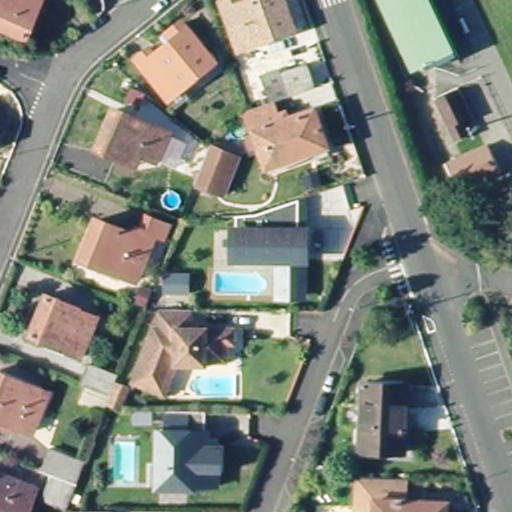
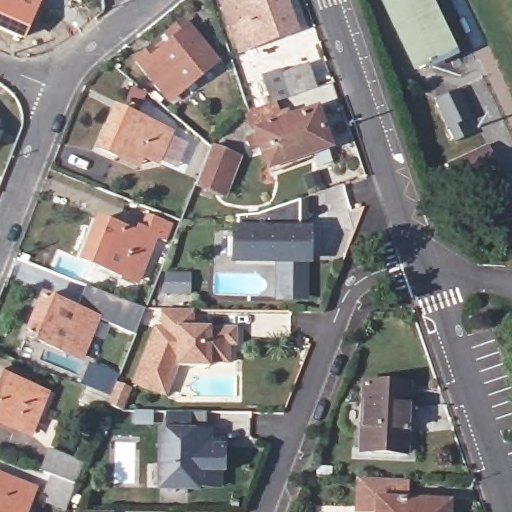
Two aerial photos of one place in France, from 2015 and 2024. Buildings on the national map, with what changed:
unchanged [(41,0),(25,38),(0,28),(0,0),(41,0)]
unchanged [(237,4),(239,11),(263,2),(262,0),(285,0),(297,36),(239,56),(222,9),(237,4)]
unchanged [(420,72),(385,0),(432,0),(458,52),(420,72)]
unchanged [(152,52),(157,57),(169,47),(167,40),(184,26),(217,63),(173,102),(139,63),(152,52)]
unchanged [(268,100),(262,102),(253,75),(273,68),(275,73),(306,62),(313,85),(268,100)]
unchanged [(475,119),(466,123),(473,138),(457,145),(437,103),(462,92),(475,119)]
unchanged [(262,102),(268,100),(273,116),(310,104),(323,144),(262,164),(244,109),(262,102)]
unchanged [(115,109),(169,132),(157,160),(142,154),(137,165),(98,148),(115,109)]
unchanged [(245,156),(236,177),(229,195),(197,183),(212,144),(245,156)]
unchanged [(503,176),(463,195),(451,168),(481,154),(491,149),(503,176)]
unchanged [(296,236),(302,235),(306,262),(303,263),(308,300),(286,302),(281,266),(236,271),(232,244),(234,243),(232,221),(250,219),(292,204),(296,236)]
unchanged [(146,310),(133,306),(138,284),(82,261),(97,225),(139,242),(142,233),(151,214),(172,222),(163,242),(157,239),(141,277),(157,283),(146,310)]
unchanged [(170,272),(190,274),(189,294),(167,295),(170,272)]
unchanged [(43,296),(97,318),(82,356),(27,335),(43,296)]
unchanged [(151,391),(132,384),(154,328),(161,328),(161,311),(192,311),(192,328),(237,329),(237,346),(231,346),(231,364),(211,364),(211,367),(177,367),(171,381),(165,397),(151,391)]
unchanged [(103,414),(102,414),(76,403),(84,385),(80,384),(88,364),(117,376),(110,396),(105,408),(103,414)]
unchanged [(41,395),(27,432),(0,422),(0,380),(41,395)]
unchanged [(366,385),(412,386),(410,455),(363,454),(366,385)]
unchanged [(145,415),(130,416),(130,408),(132,408),(145,408),(145,415)]
unchanged [(192,408),(201,408),(201,430),(202,430),(202,442),(219,442),(220,468),(215,469),(215,483),(192,483),(192,486),(162,486),(161,445),(155,445),(155,428),(162,428),(162,408),(192,408)]
unchanged [(66,509),(44,500),(54,475),(50,473),(57,455),(82,466),(76,484),(67,507),(66,509)]
unchanged [(32,489),(24,512),(0,512),(0,477),(32,489)]
unchanged [(442,512),(358,512),(358,478),(398,479),(398,504),(442,504),(442,512)]

